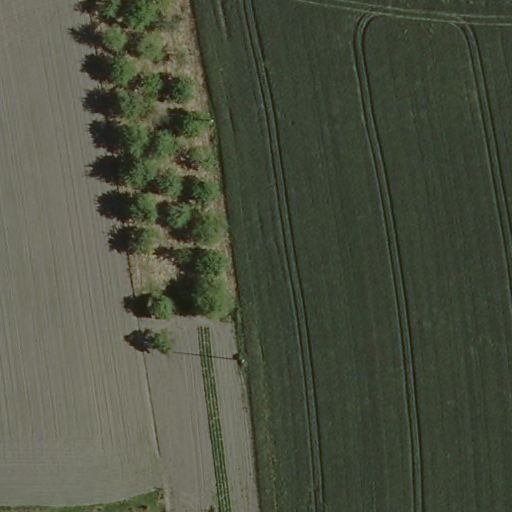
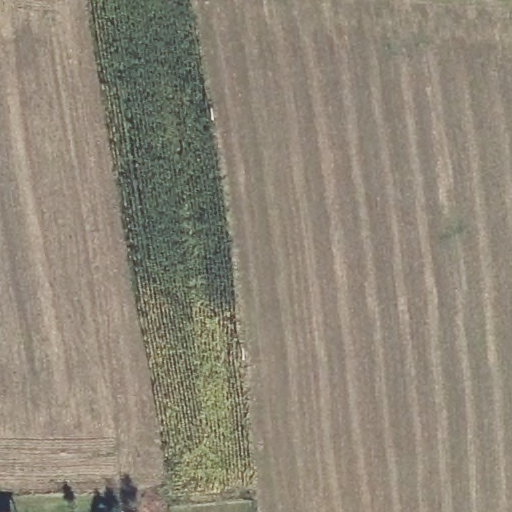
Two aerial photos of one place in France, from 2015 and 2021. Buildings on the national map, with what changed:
[]

